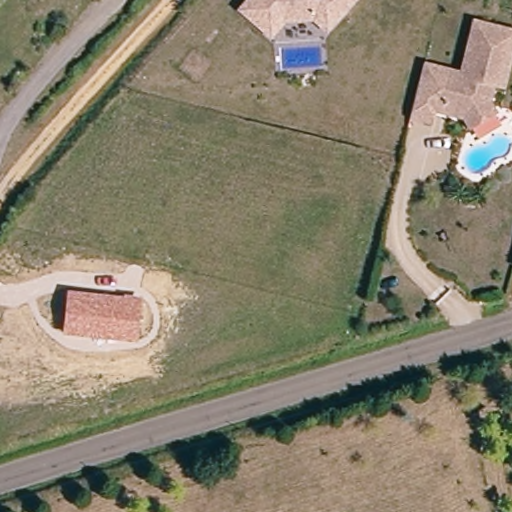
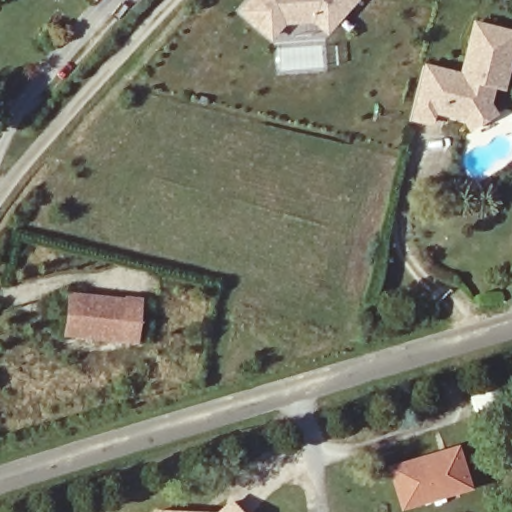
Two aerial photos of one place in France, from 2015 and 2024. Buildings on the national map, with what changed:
unchanged [(247,0),(361,0),(328,34),(315,21),(283,24),(270,39),(238,9),(247,0)]
unchanged [(467,112),(447,107),(444,102),(437,100),(432,117),(411,111),(420,78),(425,60),(467,71),(471,57),(467,56),(477,18),(512,27),(512,49),(509,48),(506,61),(510,62),(504,83),(495,80),(490,99),(495,109),(473,122),(467,112)]
unchanged [(141,298),(137,342),(63,333),(67,291),(141,298)]
new [(491,388),(496,408),(473,416),(467,395),(491,388)]
new [(457,442),(471,488),(399,510),(384,465),(457,442)]
new [(151,512),(151,508),(217,510),(231,498),(243,512),(151,512)]

